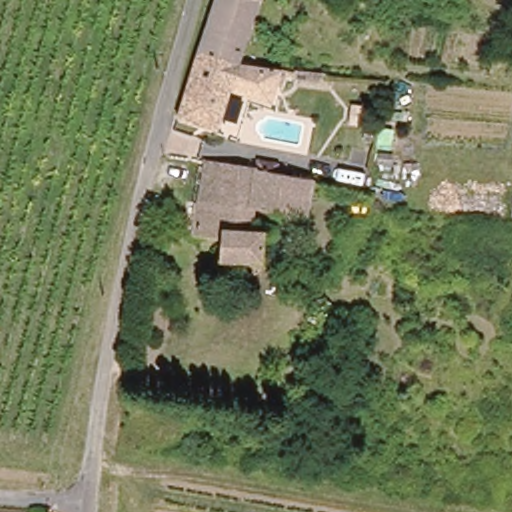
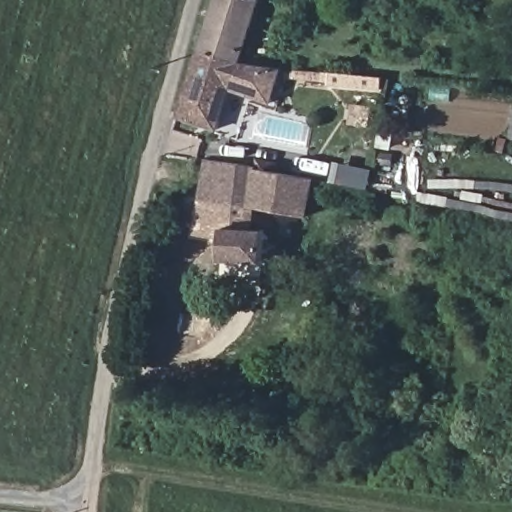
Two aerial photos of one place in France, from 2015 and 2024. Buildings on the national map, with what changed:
unchanged [(260,50),(257,65),(193,51),(207,0),(250,0),(238,46),(260,50)]
unchanged [(262,67),(281,70),(291,71),(290,76),(275,74),(269,101),(254,98),(226,91),(217,133),(173,123),(193,51),(257,65),(262,67)]
unchanged [(307,217),(254,207),(249,229),(264,233),(258,260),(216,251),(219,236),(183,227),(190,194),(197,195),(208,154),(247,163),(318,179),(307,217)]
unchanged [(273,265),(261,261),(267,244),(278,251),(273,265)]

